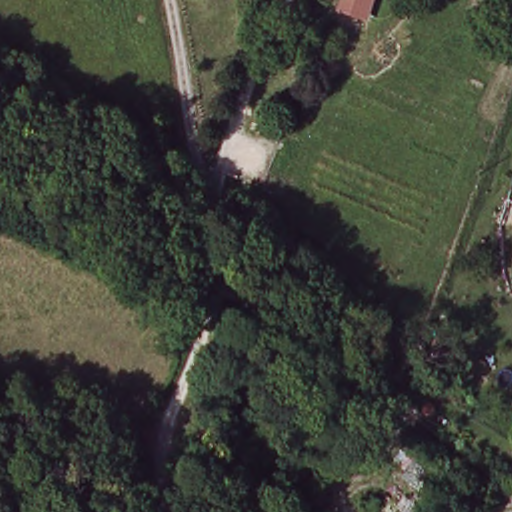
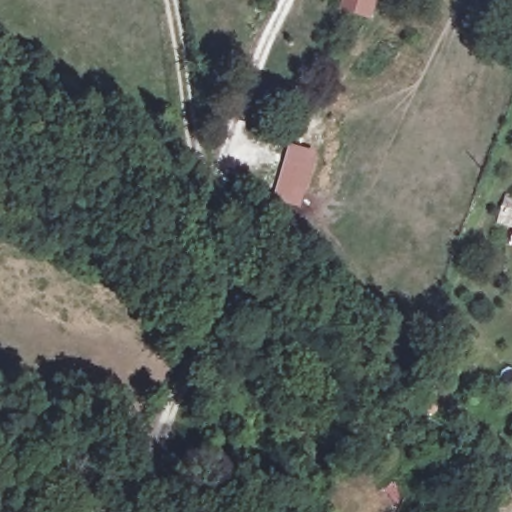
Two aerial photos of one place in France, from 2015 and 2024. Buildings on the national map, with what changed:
new [(378,0),(372,20),(339,11),(342,0),(378,0)]
new [(316,152),(301,207),(276,200),(291,146),(316,152)]

